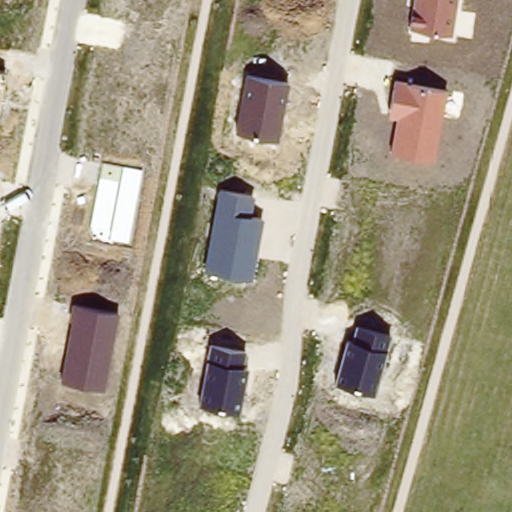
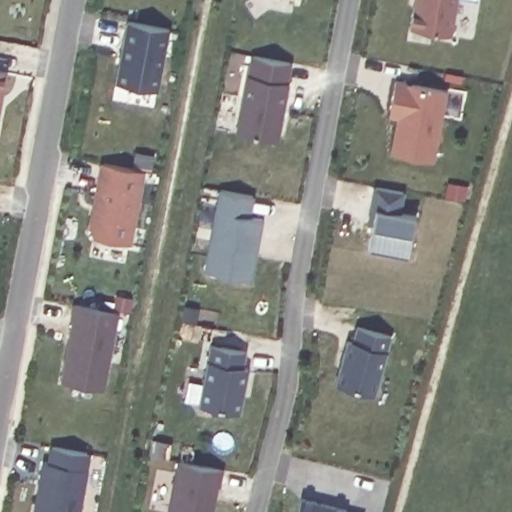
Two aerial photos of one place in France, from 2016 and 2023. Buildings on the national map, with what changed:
unchanged [(456,0),(452,32),(409,27),(413,0),(456,0)]
new [(127,24),(170,31),(158,93),(116,85),(118,70),(120,62),(127,24)]
unchanged [(0,109),(0,69),(7,70),(0,109)]
unchanged [(235,134),(245,76),(288,83),(278,141),(235,134)]
unchanged [(393,80),(445,92),(433,160),(391,152),(397,118),(388,115),(393,80)]
unchanged [(98,161),(129,166),(133,150),(152,154),(150,170),(143,169),(129,242),(91,236),(84,226),(98,161)]
unchanged [(218,187),(255,195),(251,214),(265,216),(251,280),(202,270),(218,187)]
new [(370,225),(372,210),(377,189),(405,194),(401,215),(417,217),(413,240),(410,257),(377,251),(369,250),(374,226),(370,225)]
new [(377,251),(410,257),(413,240),(420,241),(413,280),(373,273),(377,251)]
unchanged [(60,381),(74,302),(119,310),(105,388),(60,381)]
unchanged [(335,382),(347,336),(352,337),(355,323),(390,333),(374,392),(335,382)]
unchanged [(210,342),(246,349),(243,365),(249,367),(240,413),(200,406),(210,342)]
new [(41,459),(45,460),(47,445),(88,451),(78,512),(31,512),(41,459)]
new [(225,471),(222,488),(219,488),(216,505),(215,512),(172,512),(181,463),(225,471)]
new [(300,493),(335,502),(333,510),(346,512),(295,512),(300,493)]

